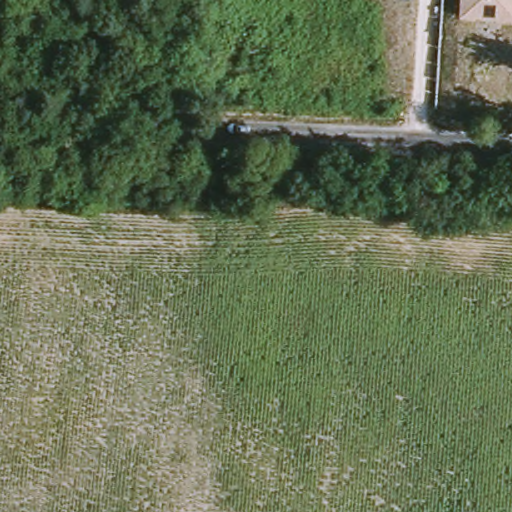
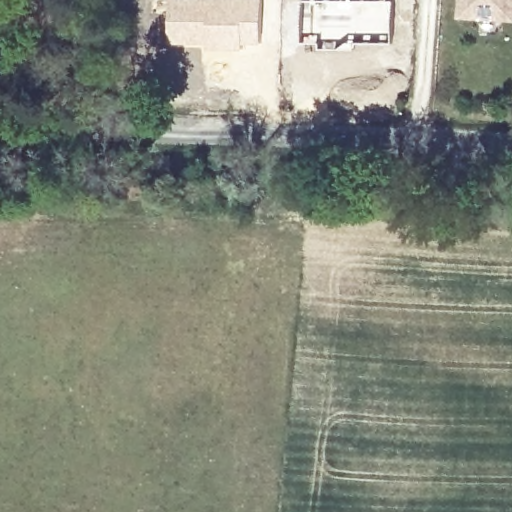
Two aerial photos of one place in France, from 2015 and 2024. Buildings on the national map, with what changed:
new [(262,0),(260,45),(216,48),(168,43),(170,0),(262,0)]
new [(347,35),(319,40),(319,33),(309,33),(309,0),(391,0),(389,35),(347,35)]
unchanged [(512,0),(512,19),(459,15),(460,0),(512,0)]

